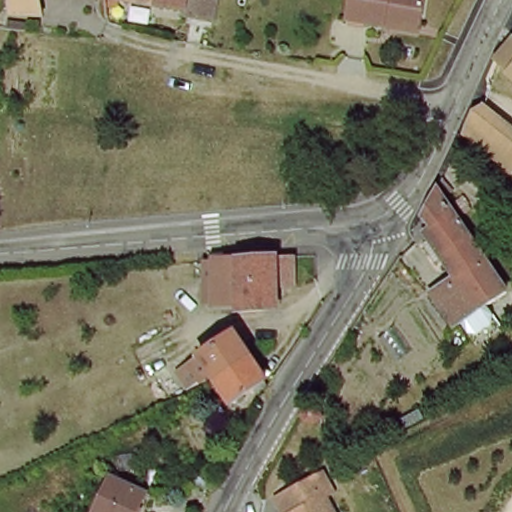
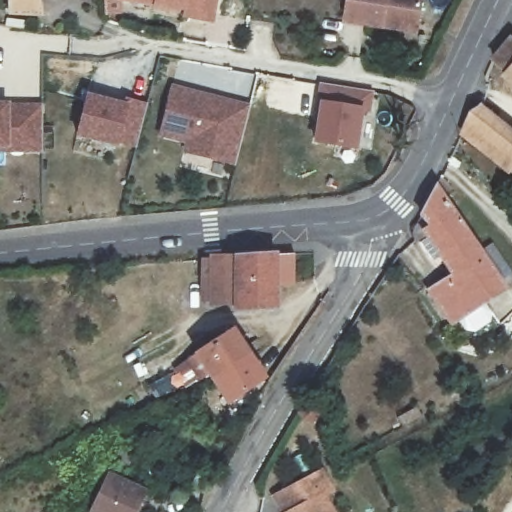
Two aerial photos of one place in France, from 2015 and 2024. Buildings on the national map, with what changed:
unchanged [(12,11),(12,0),(40,0),(43,11),(12,11)]
unchanged [(215,0),(211,19),(129,0),(215,0)]
unchanged [(352,18),(355,0),(425,0),(422,21),(420,30),(387,24),(352,18)]
unchanged [(512,29),(512,87),(503,76),(493,86),(481,74),(486,55),(487,51),(494,38),(509,26),(512,29)]
new [(252,103),(238,161),(187,150),(190,139),(163,132),(175,84),(252,103)]
new [(374,92),(370,114),(363,114),(357,151),(312,144),(316,121),(313,121),(320,84),(374,92)]
new [(129,102),(131,96),(151,103),(140,143),(120,138),(119,142),(80,131),(91,92),(129,102)]
unchanged [(465,126),(473,99),(475,93),(509,137),(512,138),(512,170),(507,179),(465,126)]
new [(11,101),(11,105),(46,105),(46,148),(10,149),(10,143),(0,143),(0,102),(11,101)]
unchanged [(439,171),(492,268),(503,286),(483,300),(491,309),(469,325),(461,325),(449,322),(434,300),(426,289),(453,271),(418,210),(439,171)]
unchanged [(316,250),(318,275),(272,278),(275,301),(239,307),(237,295),(214,297),(207,256),(316,250)]
unchanged [(160,301),(163,286),(185,290),(180,317),(169,315),(158,313),(160,301)]
unchanged [(185,359),(195,352),(233,328),(265,376),(228,400),(215,382),(209,372),(198,379),(185,359)]
unchanged [(190,485),(202,464),(211,469),(198,490),(190,485)]
unchanged [(89,512),(106,471),(140,484),(129,512),(90,512),(89,512)]
unchanged [(292,509),(284,490),(329,471),(338,490),(327,494),(335,512),(284,512),(292,509)]

